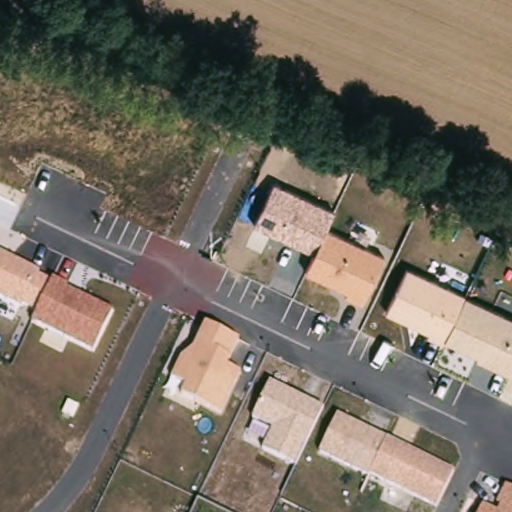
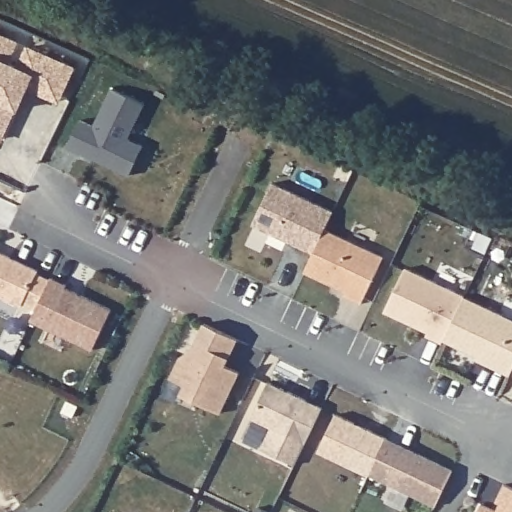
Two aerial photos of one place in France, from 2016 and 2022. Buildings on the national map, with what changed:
new [(27,46),(77,69),(61,104),(29,89),(19,113),(2,142),(0,140),(0,32),(20,42),(12,62),(19,66),(27,46)]
new [(68,147),(81,120),(95,127),(112,88),(145,104),(129,139),(144,146),(129,176),(94,159),(83,154),(68,147)]
unchanged [(334,212),(326,229),(385,258),(362,306),(343,298),(347,291),(305,272),(313,253),(252,225),(273,183),(334,212)]
unchanged [(36,311),(25,306),(22,309),(0,298),(0,252),(40,271),(37,274),(50,281),(52,278),(71,286),(69,289),(112,311),(92,351),(32,322),(36,311)]
unchanged [(512,320),(512,370),(510,376),(474,358),(475,355),(445,341),(443,345),(427,337),(428,333),(386,313),(407,268),(512,320)]
unchanged [(180,395),(185,386),(171,380),(182,357),(193,349),(205,323),(240,341),(227,366),(242,374),(222,415),(180,395)]
unchanged [(262,449),(272,429),(253,419),(271,383),(322,408),(296,465),(262,449)]
unchanged [(453,472),(436,507),(319,452),(337,415),(453,472)]
unchanged [(497,510),(500,505),(496,503),(505,485),(512,488),(512,512),(478,512),(482,504),(497,510)]

